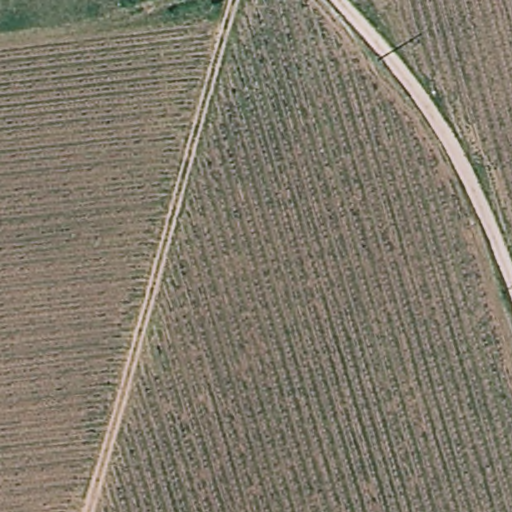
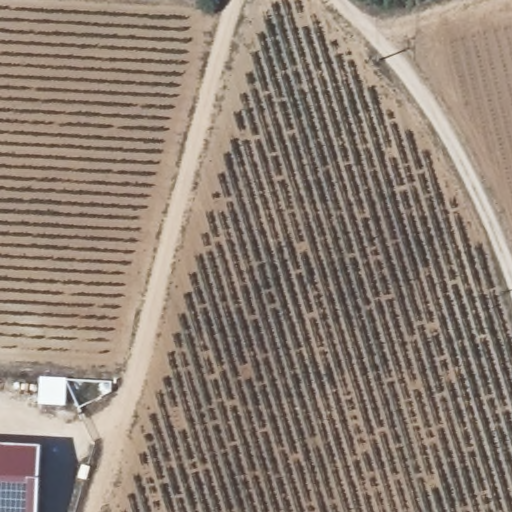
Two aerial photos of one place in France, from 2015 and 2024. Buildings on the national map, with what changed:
new [(41,449),(37,512),(0,512),(0,447),(41,449)]

